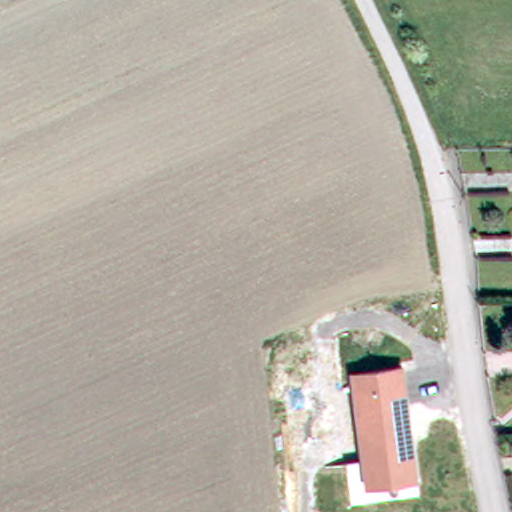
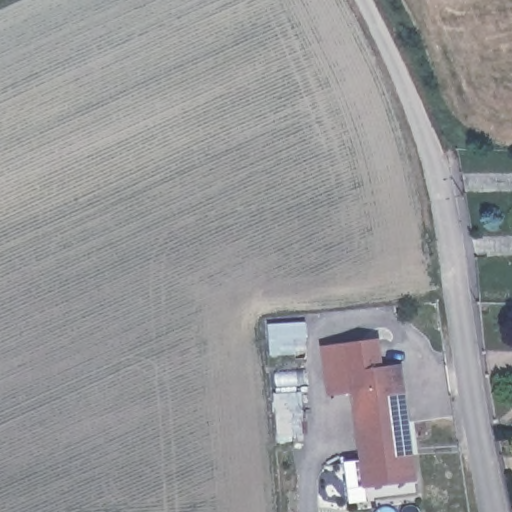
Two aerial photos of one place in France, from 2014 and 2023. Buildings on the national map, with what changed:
new [(352,371),(354,391),(330,395),(324,345),(382,336),(386,366),(352,371)]
unchanged [(403,364),(418,480),(364,485),(352,371),(403,364)]

